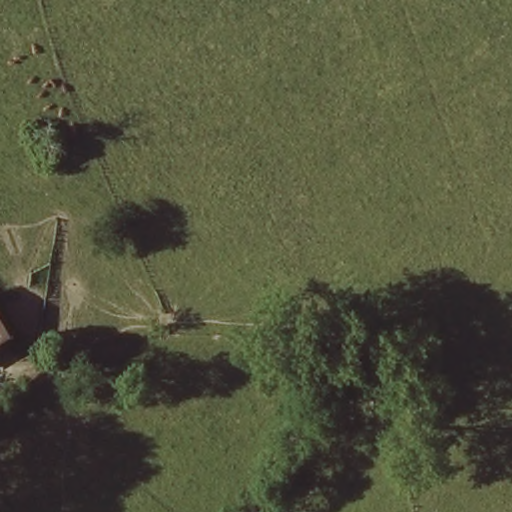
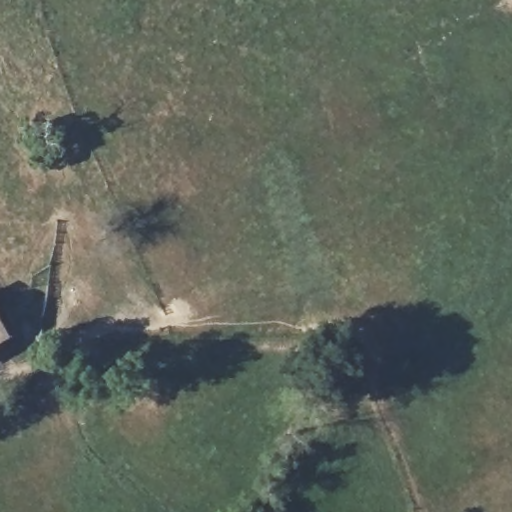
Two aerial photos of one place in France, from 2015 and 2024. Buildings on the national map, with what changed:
unchanged [(0,342),(0,327),(5,339),(0,342)]

